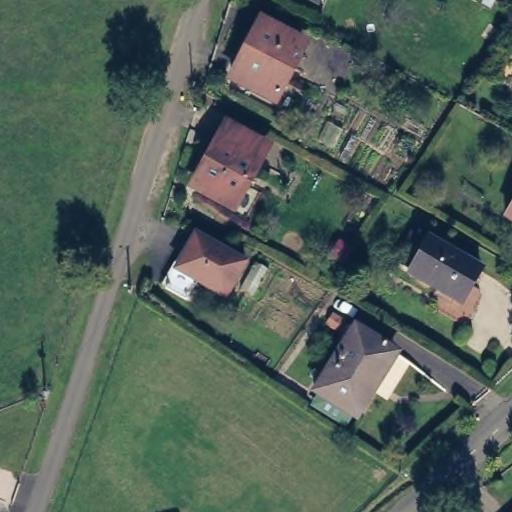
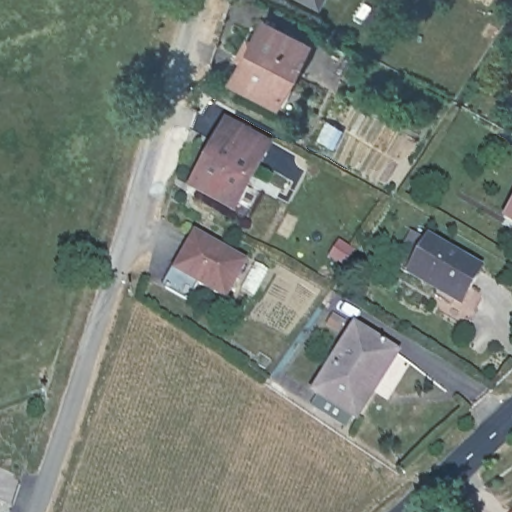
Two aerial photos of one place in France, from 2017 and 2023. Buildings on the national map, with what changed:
unchanged [(225,76),(254,27),(255,26),(257,27),(295,49),(297,50),(295,52),(268,99),(267,102),(265,100),(226,79),(224,77),(225,76)]
unchanged [(265,146),(235,207),(215,196),(210,205),(185,192),(222,122),(265,146)]
unchanged [(512,202),(512,220),(507,217),(505,216),(506,214),(512,202)]
unchanged [(160,282),(192,232),(194,230),(196,231),(237,258),(239,259),(238,262),(217,293),(217,295),(214,294),(195,282),(193,281),(192,282),(183,296),(182,297),(180,296),(162,285),(159,284),(160,282)]
unchanged [(467,302),(415,276),(416,272),(403,266),(410,252),(418,236),(432,243),(432,241),(485,270),(467,302)]
unchanged [(315,383),(348,322),(350,321),(352,322),(387,342),(390,342),(388,345),(354,407),(352,408),(350,407),(315,387),(313,385),(315,383)]
unchanged [(512,512),(509,512),(512,510),(512,512)]

